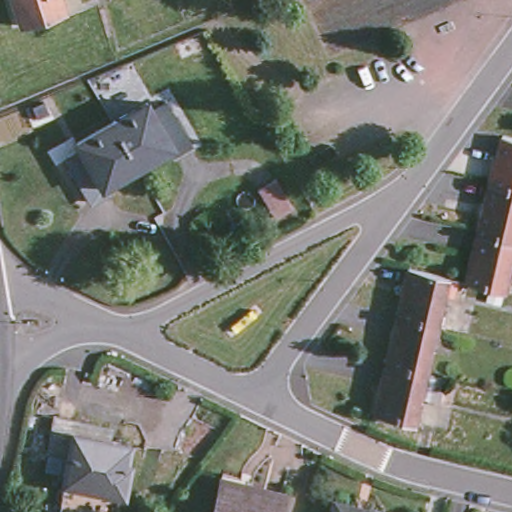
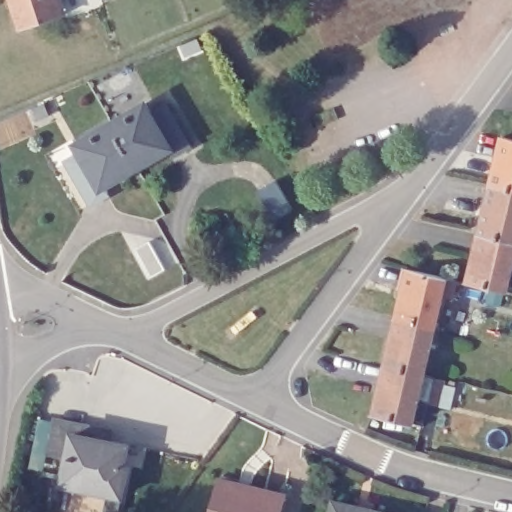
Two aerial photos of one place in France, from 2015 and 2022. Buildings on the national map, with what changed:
unchanged [(22,20),(16,0),(63,0),(65,6),(22,20)]
unchanged [(149,98),(154,106),(168,98),(192,141),(179,149),(175,143),(140,161),(115,116),(149,98)]
unchanged [(140,161),(103,183),(107,189),(91,197),(69,154),(83,145),(77,137),(115,116),(140,161)]
unchanged [(500,136),(512,139),(512,188),(489,183),(500,136)]
unchanged [(298,209),(281,218),(264,188),(281,180),(298,209)]
unchanged [(466,280),(477,231),(489,183),(512,188),(512,252),(511,257),(503,289),(466,280)]
unchanged [(394,314),(405,267),(444,275),(454,278),(450,296),(439,294),(432,323),(394,314)]
unchanged [(421,372),(382,363),(394,314),(432,323),(421,372)]
unchanged [(409,422),(371,414),(382,363),(421,372),(409,422)]
unchanged [(106,433),(104,445),(123,449),(119,469),(124,470),(117,497),(56,482),(62,457),(43,452),(51,419),(106,433)]
unchanged [(244,488),(246,483),(280,492),(276,512),(214,512),(221,483),(244,488)]
unchanged [(394,512),(330,512),(334,497),(394,512)]

